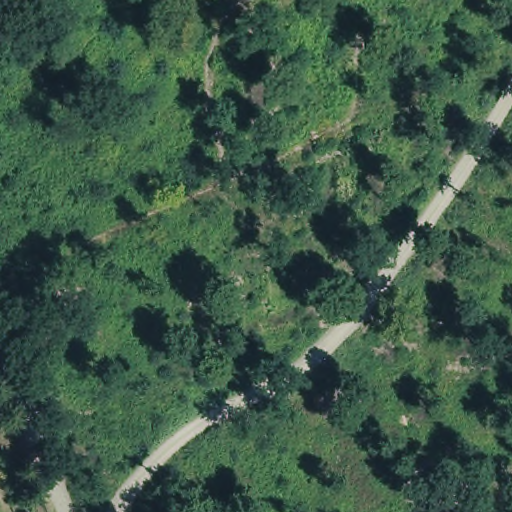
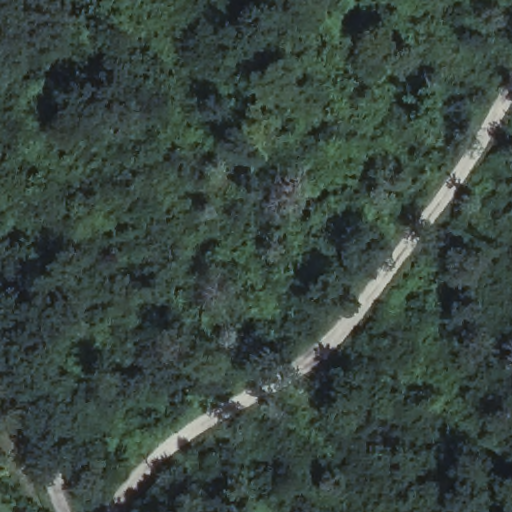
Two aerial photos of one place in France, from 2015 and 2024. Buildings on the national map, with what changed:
unchanged [(191,512),(166,512),(187,502),(191,512)]

